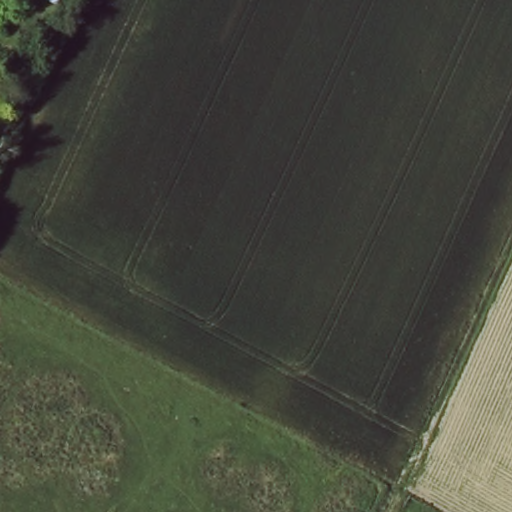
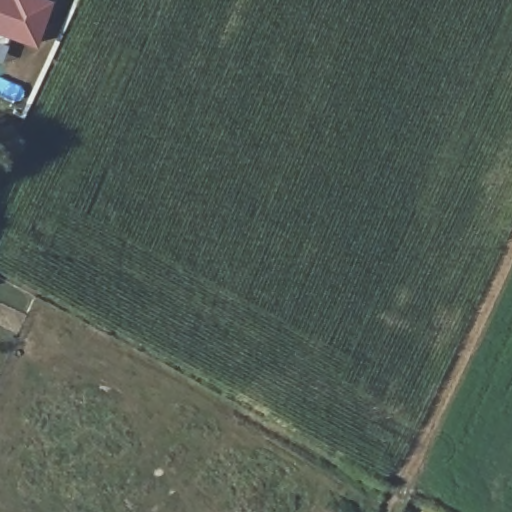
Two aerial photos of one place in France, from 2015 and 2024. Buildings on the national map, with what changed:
new [(55,0),(38,47),(0,34),(0,0),(55,0)]

